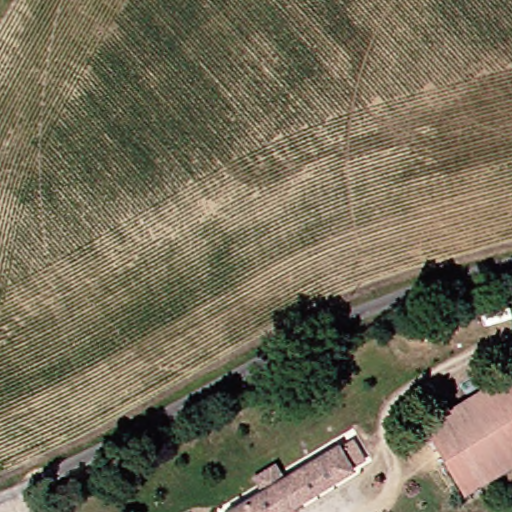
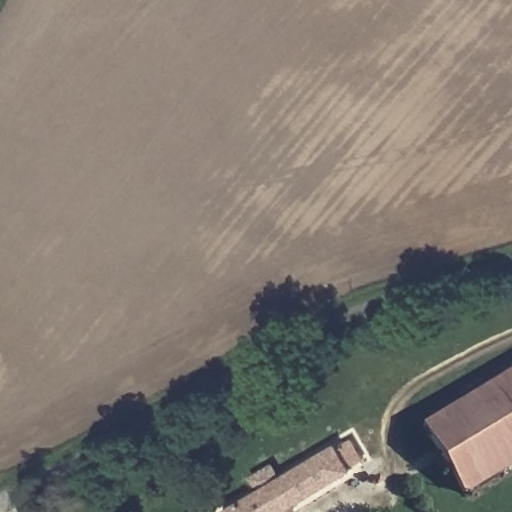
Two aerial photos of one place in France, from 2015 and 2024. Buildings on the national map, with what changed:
unchanged [(432,426),(512,377),(512,470),(472,493),(432,426)]
unchanged [(294,512),(260,512),(252,499),(338,450),(354,478),(294,512)]

